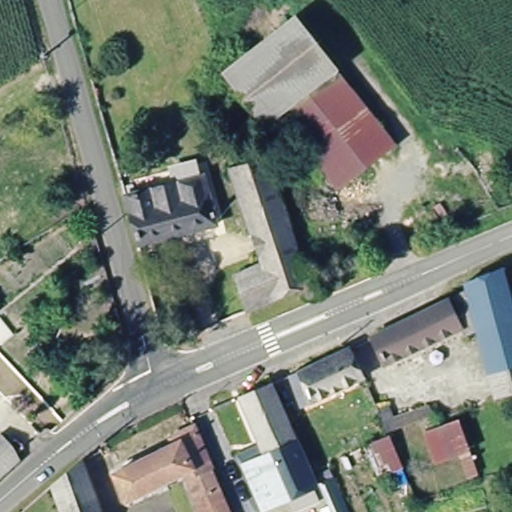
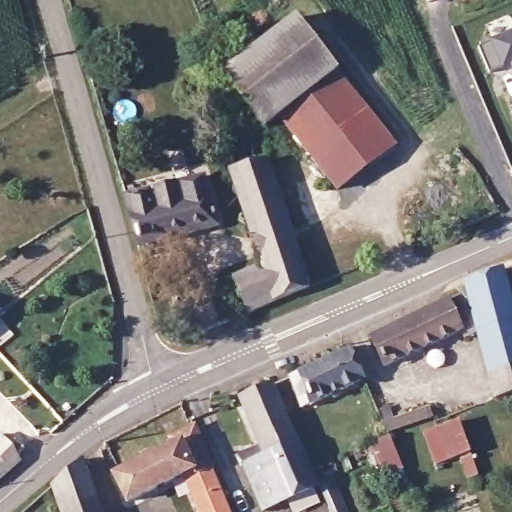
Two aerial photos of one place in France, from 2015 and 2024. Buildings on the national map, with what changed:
unchanged [(268,130),(224,75),(295,17),(342,74),(285,119),(268,130)]
new [(512,60),(506,63),(507,66),(492,73),(481,46),(512,34),(512,60)]
unchanged [(342,74),(397,143),(342,186),(285,119),(342,74)]
unchanged [(267,155),(311,286),(276,303),(262,264),(233,165),(267,155)]
unchanged [(203,176),(216,227),(136,245),(123,194),(203,176)]
unchanged [(249,313),(235,276),(262,264),(276,303),(249,313)]
unchanged [(500,395),(481,322),(391,365),(377,334),(473,290),(471,282),(507,266),(509,271),(512,284),(512,416),(505,418),(500,395)]
unchanged [(2,313),(0,315),(0,310),(2,313)]
unchanged [(362,383),(297,410),(286,377),(346,346),(362,383)]
unchanged [(323,501),(298,512),(290,512),(286,501),(261,512),(217,407),(275,383),(323,501)]
unchanged [(433,400),(438,410),(397,427),(392,420),(433,400)]
unchanged [(462,415),(471,447),(439,458),(429,425),(462,415)]
unchanged [(215,462),(208,466),(217,487),(197,496),(184,471),(127,497),(113,472),(177,440),(175,435),(195,421),(215,462)]
unchanged [(10,437),(30,460),(2,486),(0,484),(0,444),(10,437)]
unchanged [(377,481),(362,450),(388,438),(402,469),(377,481)]
unchanged [(101,512),(62,512),(54,485),(82,461),(101,512)]
unchanged [(229,512),(212,512),(206,498),(220,490),(229,512)]

